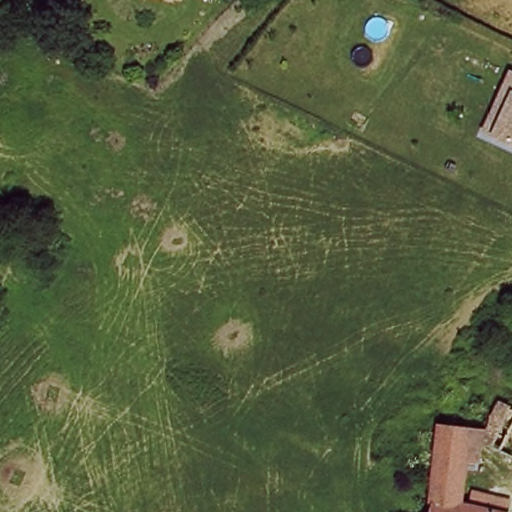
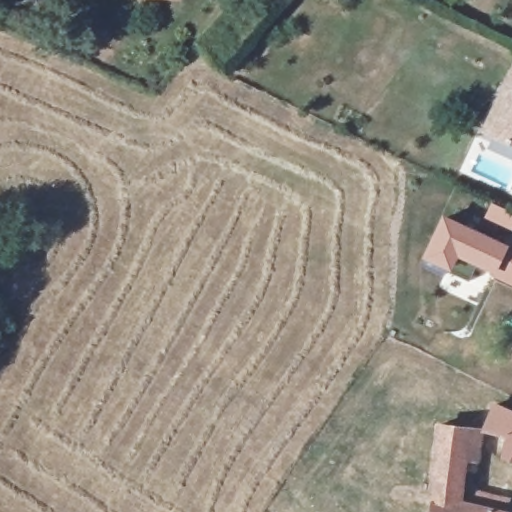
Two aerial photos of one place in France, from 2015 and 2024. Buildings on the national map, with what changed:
unchanged [(511,92),(503,87),(511,71),(512,71),(512,143),(493,134),(511,92)]
new [(501,232),(512,238),(512,283),(494,274),(459,258),(452,272),(422,257),(444,215),(496,240),(501,232)]
unchanged [(435,498),(436,467),(435,455),(435,428),(486,425),(487,425),(503,398),(512,403),(512,452),(489,441),(479,466),(469,462),(462,481),(465,501),(486,507),(489,497),(512,505),(510,512),(433,512),(435,498)]

